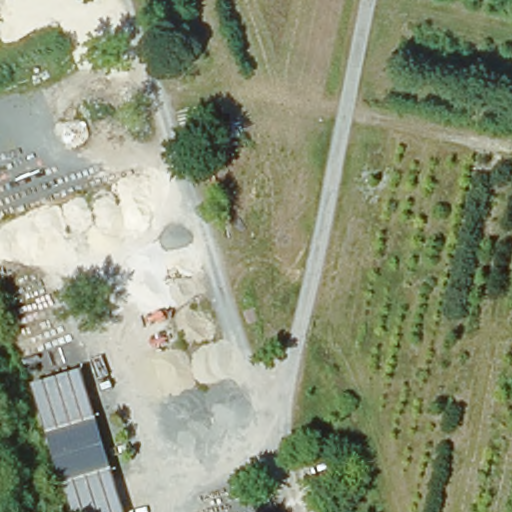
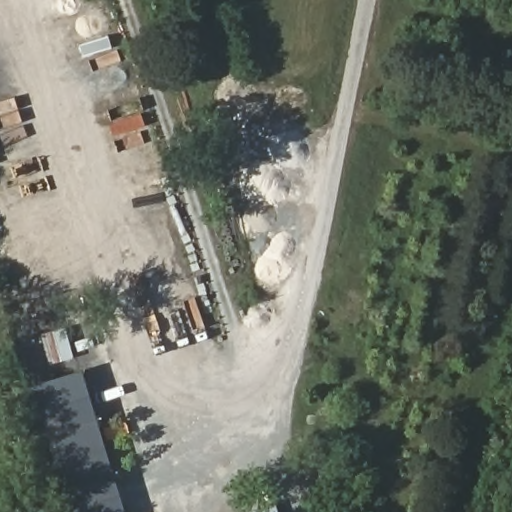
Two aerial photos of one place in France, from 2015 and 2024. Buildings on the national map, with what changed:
unchanged [(125,512),(66,512),(26,388),(79,372),(125,512)]

